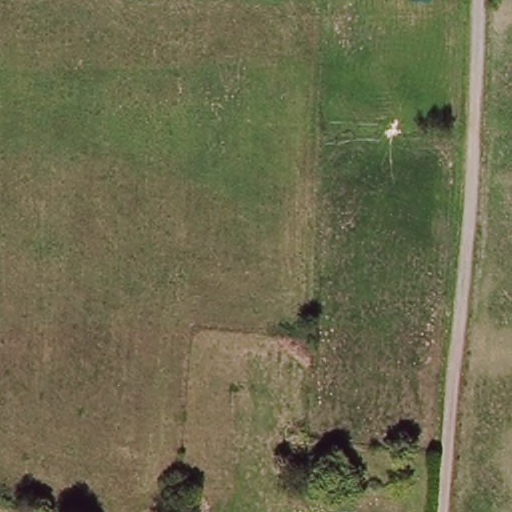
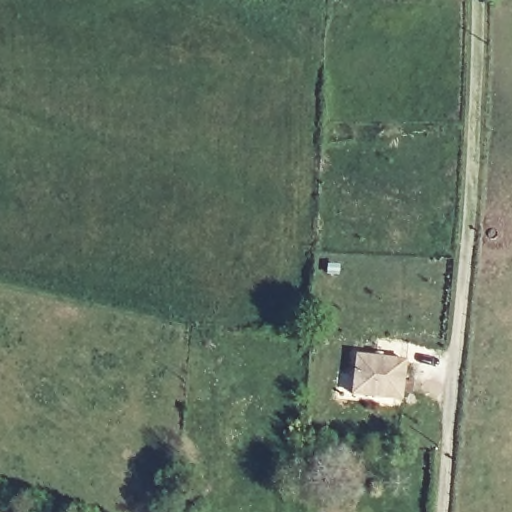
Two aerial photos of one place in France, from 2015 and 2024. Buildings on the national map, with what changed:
new [(409,359),(405,401),(353,395),(357,354),(409,359)]

